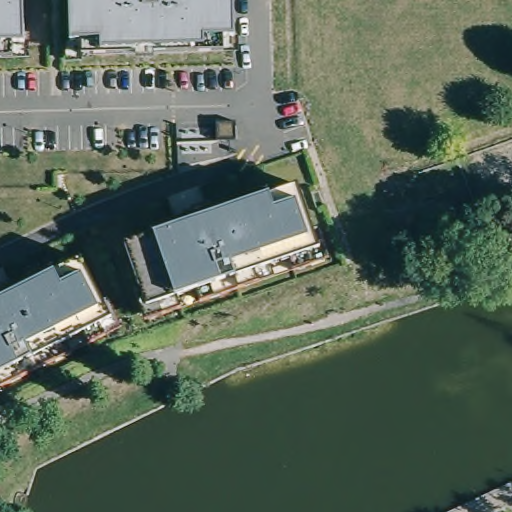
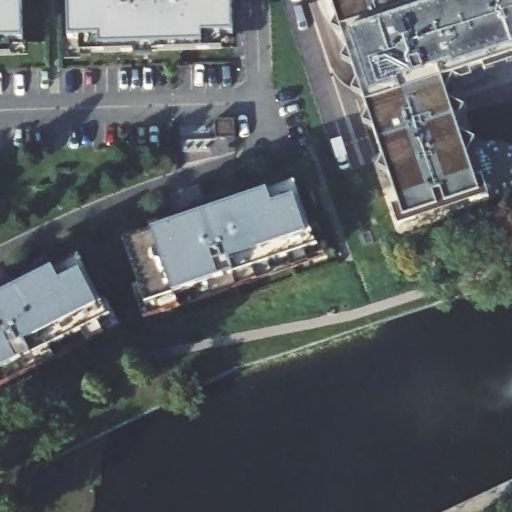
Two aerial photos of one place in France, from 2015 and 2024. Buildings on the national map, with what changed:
unchanged [(0,43),(0,0),(22,0),(23,43),(0,43)]
unchanged [(232,36),(203,38),(203,47),(99,50),(98,40),(68,41),(67,11),(67,0),(232,0),(233,36),(232,36)]
new [(437,75),(470,179),(395,202),(330,0),(512,0),(512,51),(437,75)]
unchanged [(234,120),(235,139),(216,139),(215,139),(215,120),(234,120)]
unchanged [(295,184),(315,246),(145,304),(125,243),(295,184)]
unchanged [(45,347),(52,357),(0,385),(0,295),(51,269),(79,257),(109,316),(45,347)]

